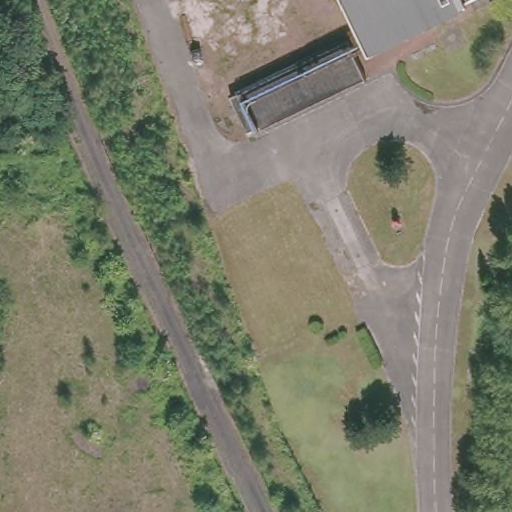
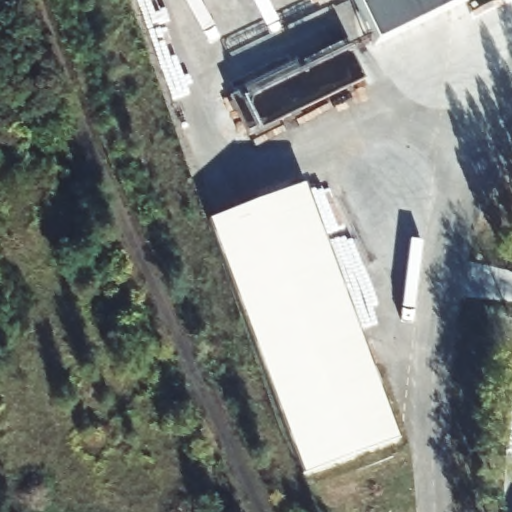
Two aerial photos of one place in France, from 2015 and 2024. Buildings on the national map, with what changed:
unchanged [(373,44),(352,0),(463,0),(373,44)]
unchanged [(345,40),(362,77),(247,132),(230,95),(345,40)]
new [(208,220),(307,184),(401,438),(302,475),(208,220)]

